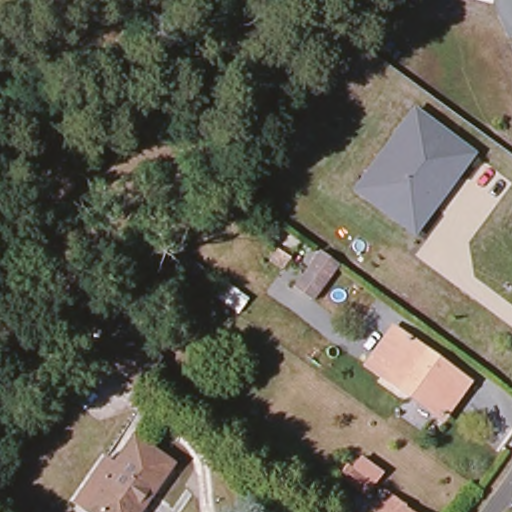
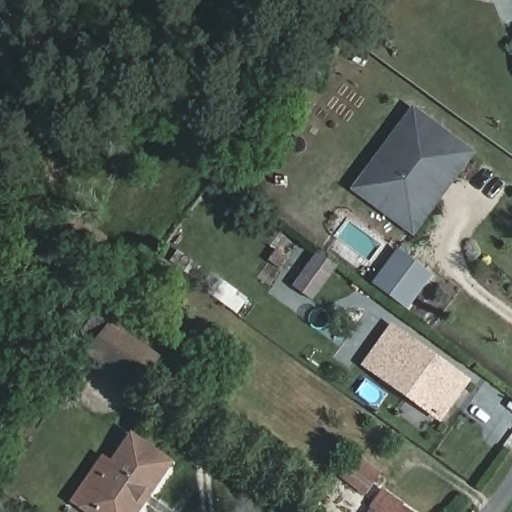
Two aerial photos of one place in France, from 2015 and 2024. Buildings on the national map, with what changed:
unchanged [(415,239),(351,189),(414,104),(478,152),(415,239)]
unchanged [(289,263),(300,244),(313,253),(297,273),(284,265),(278,272),(267,266),(275,255),(289,263)]
new [(398,250),(433,276),(408,310),(373,283),(398,250)]
unchanged [(335,269),(309,305),(292,292),(317,257),(335,269)]
unchanged [(243,298),(233,312),(208,294),(217,281),(243,298)]
unchanged [(460,382),(433,418),(359,365),(386,328),(460,382)]
unchanged [(147,393),(99,359),(118,335),(165,368),(147,393)]
unchanged [(149,494),(146,492),(133,512),(91,512),(84,507),(133,437),(171,463),(149,494)]
unchanged [(378,477),(363,497),(343,483),(344,481),(340,477),(344,471),(349,473),(358,462),(378,477)]
unchanged [(371,511),(382,495),(403,510),(402,512),(403,512),(372,512),(371,511)]

